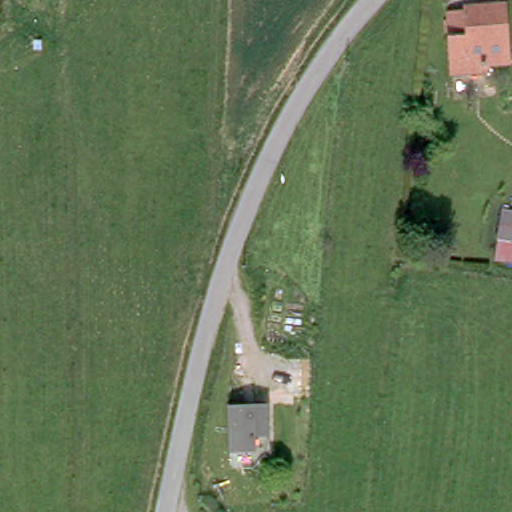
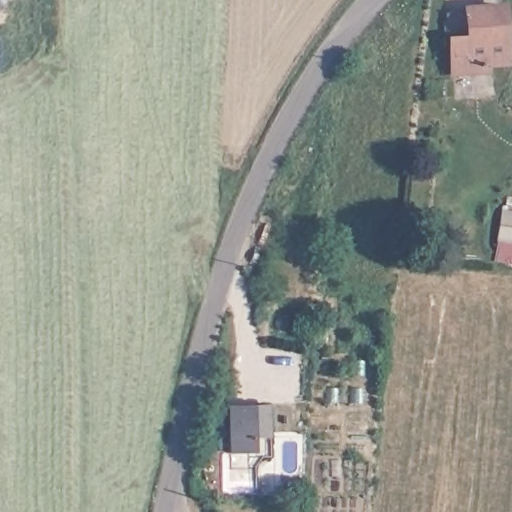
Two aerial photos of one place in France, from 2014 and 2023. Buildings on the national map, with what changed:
unchanged [(446,44),(445,23),(462,23),(462,1),(474,0),(501,0),(503,62),(479,63),(481,81),(465,82),(448,83),(446,44)]
unchanged [(512,211),(512,261),(495,259),(502,209),(512,211)]
unchanged [(268,406),(267,439),(255,439),(255,455),(228,456),(226,406),(268,406)]

